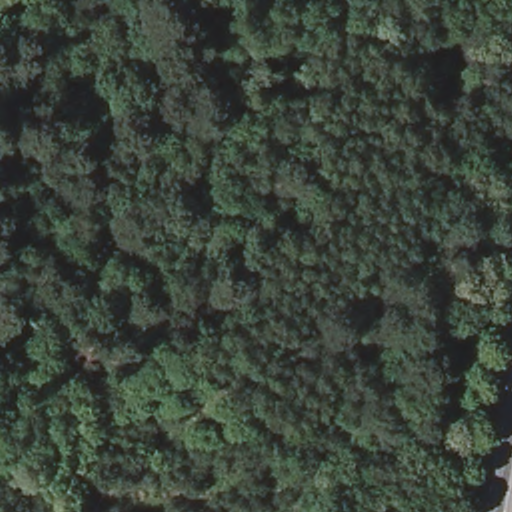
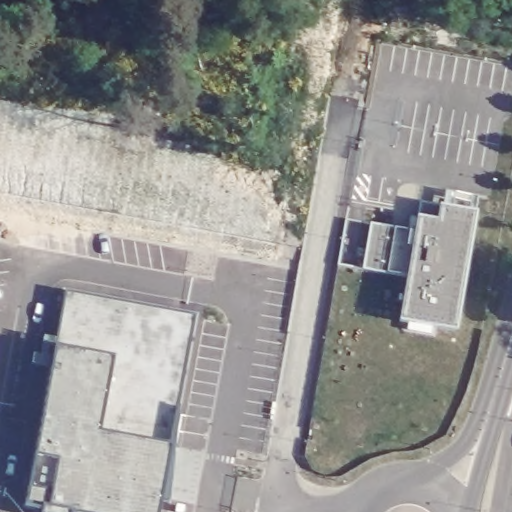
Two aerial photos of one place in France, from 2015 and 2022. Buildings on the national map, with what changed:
new [(198,311),(167,512),(24,512),(63,284),(198,311)]

